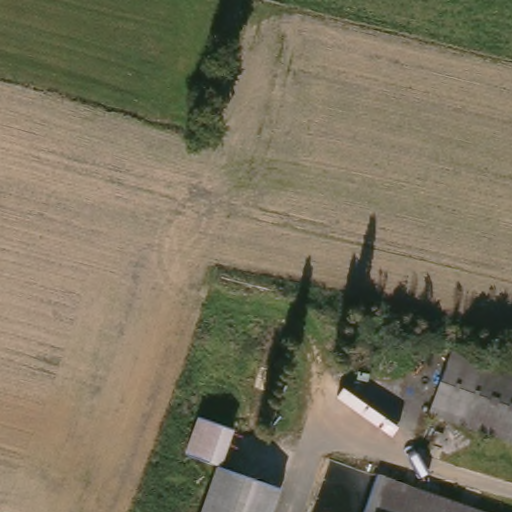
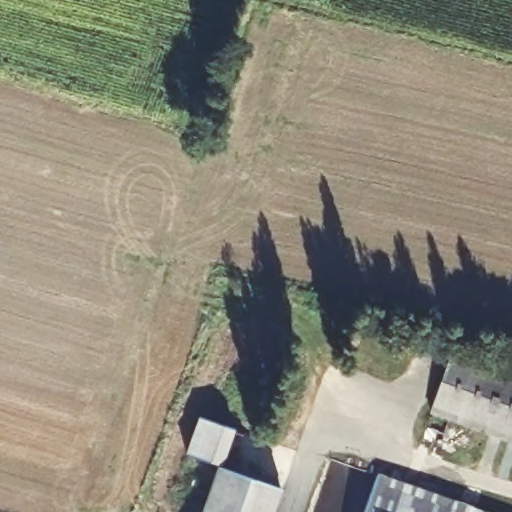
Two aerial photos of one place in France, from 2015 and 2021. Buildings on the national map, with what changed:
unchanged [(433,410),(456,347),(512,368),(512,438),(433,410)]
unchanged [(221,465),(280,483),(269,512),(203,512),(221,465)]
unchanged [(387,471),(395,475),(497,512),(372,512),(387,471)]

